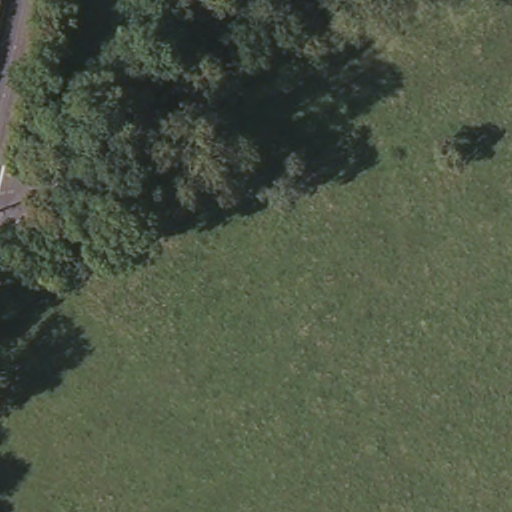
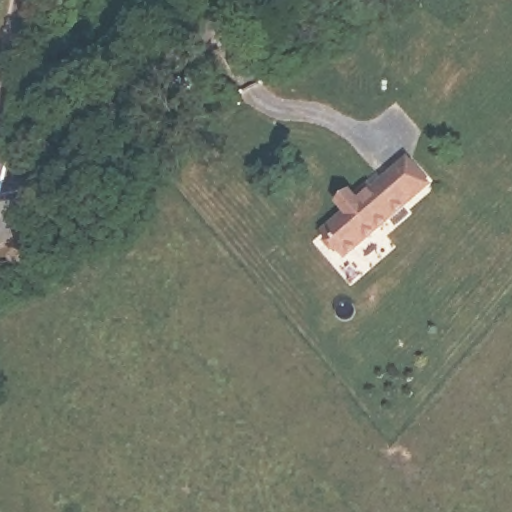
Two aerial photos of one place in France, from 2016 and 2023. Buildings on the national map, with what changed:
new [(321,237),(345,217),(341,212),(353,202),(358,210),(408,163),(433,191),(347,266),(321,237)]

